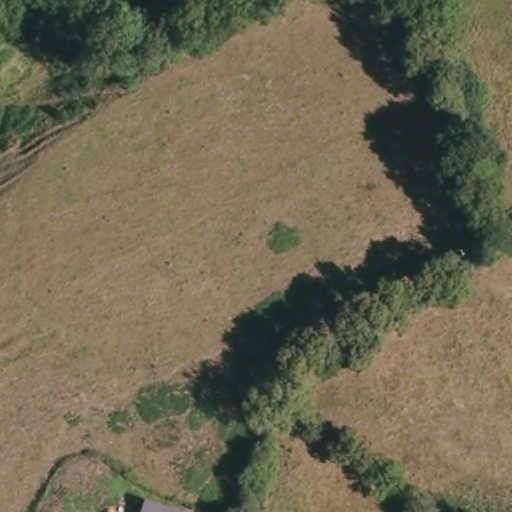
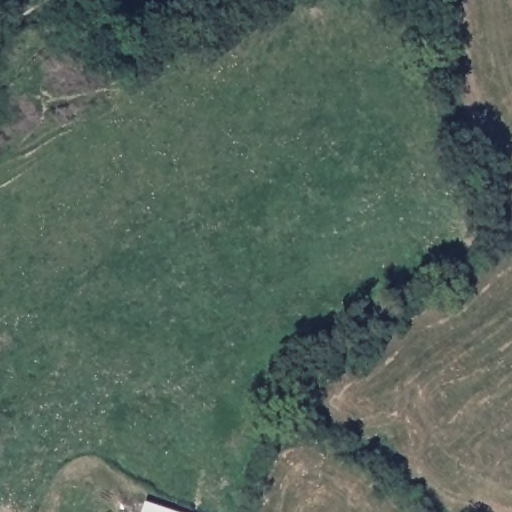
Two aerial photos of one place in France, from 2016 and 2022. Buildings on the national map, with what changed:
unchanged [(193,512),(139,512),(141,509),(147,494),(193,512)]

